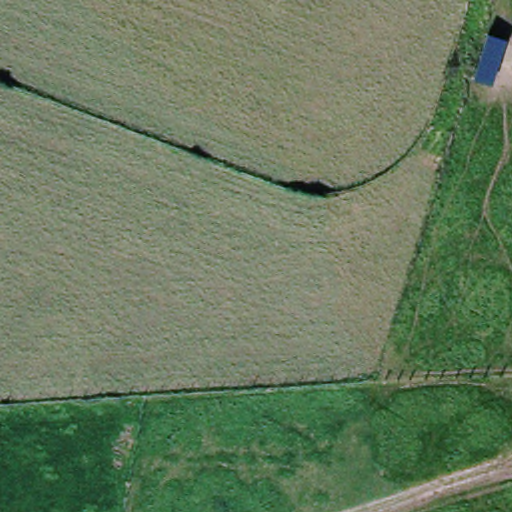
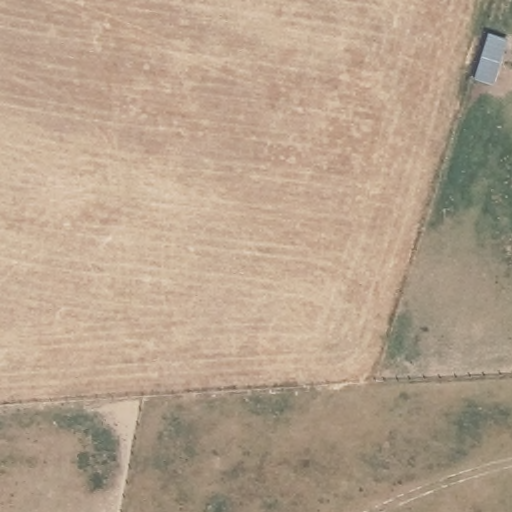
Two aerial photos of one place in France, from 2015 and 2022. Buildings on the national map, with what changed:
[]

